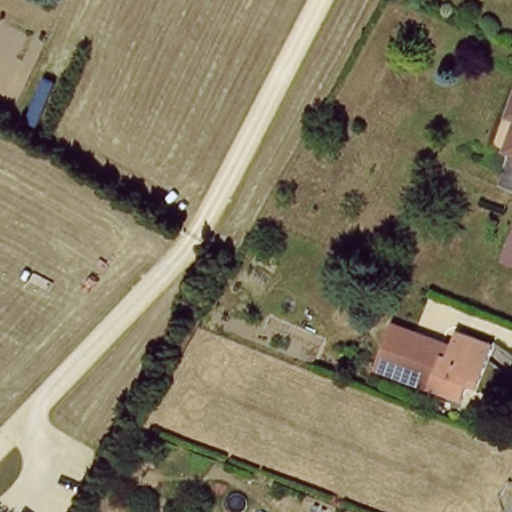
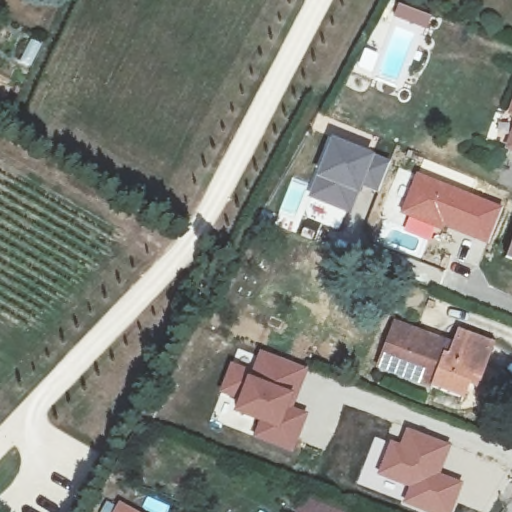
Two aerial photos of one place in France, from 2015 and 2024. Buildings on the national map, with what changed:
unchanged [(512,105),(512,110),(510,109),(512,105)]
new [(328,136),(390,160),(376,193),(360,187),(350,214),(306,197),(328,136)]
unchanged [(512,140),(512,150),(507,148),(512,140)]
new [(415,171),(502,206),(486,245),(435,228),(430,241),(402,230),(407,217),(398,212),(415,171)]
unchanged [(512,260),(507,257),(512,247),(512,260)]
unchanged [(423,332),(459,347),(465,333),(500,348),(475,403),(403,373),(383,364),(392,344),(402,323),(423,332)]
new [(258,422),(235,413),(239,400),(220,392),(232,363),(253,371),(261,352),(309,370),(293,409),(308,414),(293,455),(253,439),(258,422)]
new [(388,440),(399,443),(405,427),(451,444),(440,473),(464,482),(453,512),(420,512),(401,504),(406,488),(375,475),(388,440)]
new [(296,492),(345,510),(344,512),(291,512),(290,511),(296,492)]
new [(118,505),(130,512),(114,512),(118,505)]

